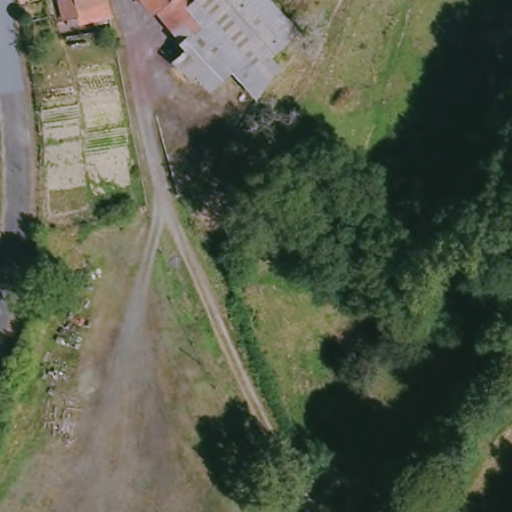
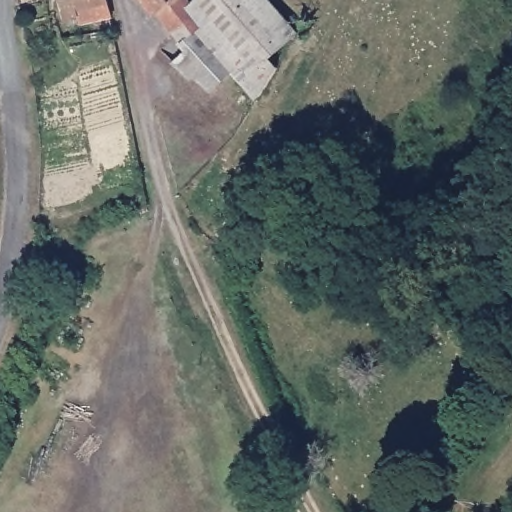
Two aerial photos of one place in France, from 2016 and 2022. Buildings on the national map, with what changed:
unchanged [(80,6),(79,0),(106,0),(110,17),(65,29),(61,15),(60,11),(80,6)]
unchanged [(183,15),(190,26),(175,39),(145,0),(187,0),(192,6),(183,15)]
unchanged [(199,0),(228,0),(272,45),(278,51),(256,95),(190,26),(183,15),(192,6),(199,0)]
unchanged [(274,0),(295,21),(272,45),(228,0),(274,0)]

